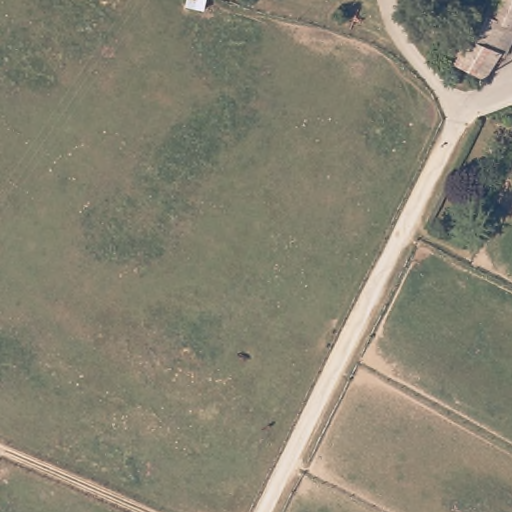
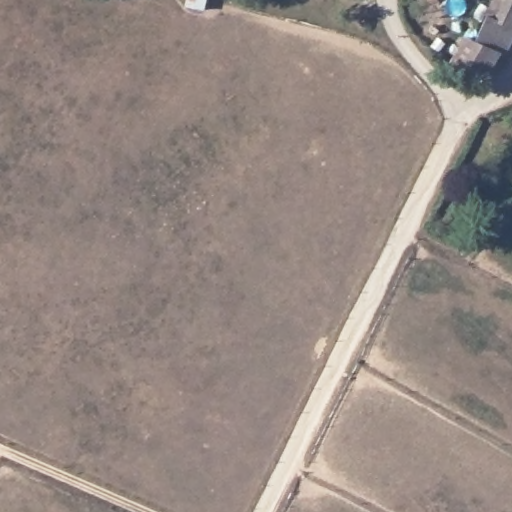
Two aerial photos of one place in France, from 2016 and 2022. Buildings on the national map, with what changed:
unchanged [(459,36),(470,41),(484,6),(487,0),(512,0),(512,29),(511,29),(499,54),(494,52),(477,74),(446,59),(459,36)]

